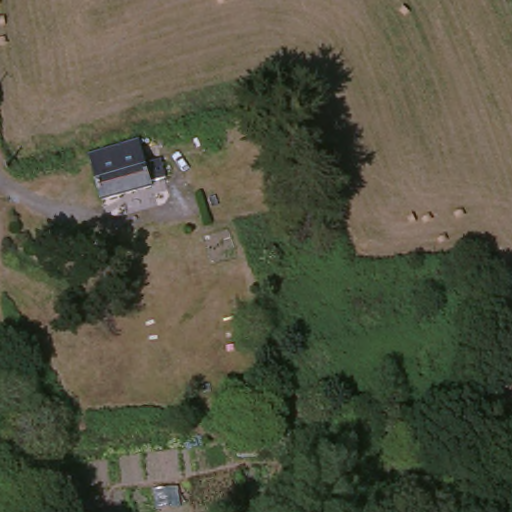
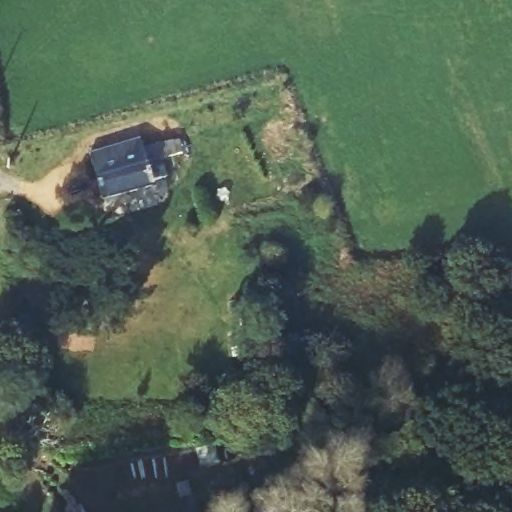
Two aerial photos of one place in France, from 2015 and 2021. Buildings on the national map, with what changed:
unchanged [(149,165),(165,160),(168,180),(154,184),(154,188),(104,199),(92,151),(142,138),(149,165)]

